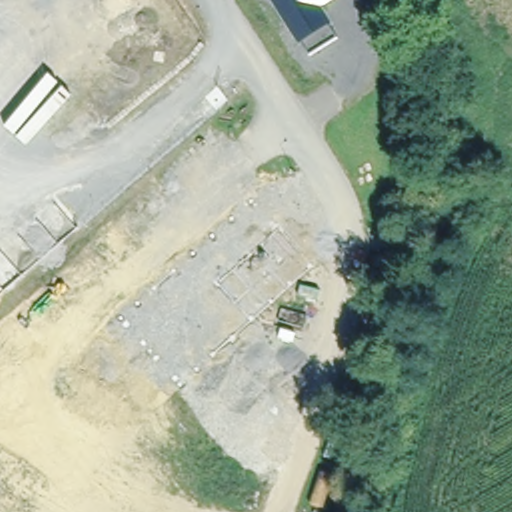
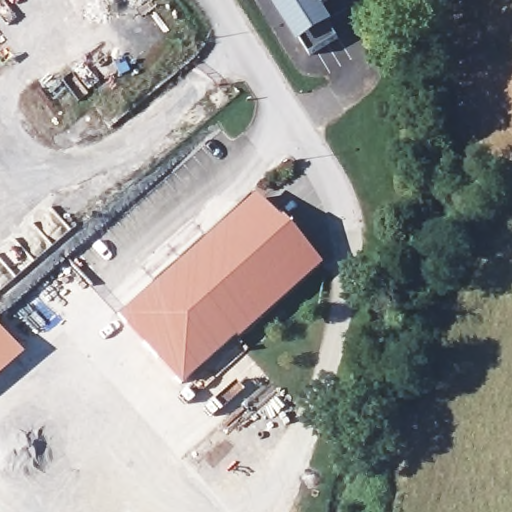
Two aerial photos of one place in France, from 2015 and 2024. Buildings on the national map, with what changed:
unchanged [(322,47),(293,0),(332,0),(351,29),(322,47)]
new [(258,194),(282,219),(283,217),(320,257),(188,377),(128,312),(258,194)]
new [(1,371),(0,370),(0,313),(29,346),(1,371)]
unchanged [(0,371),(0,370),(1,371),(0,371)]

